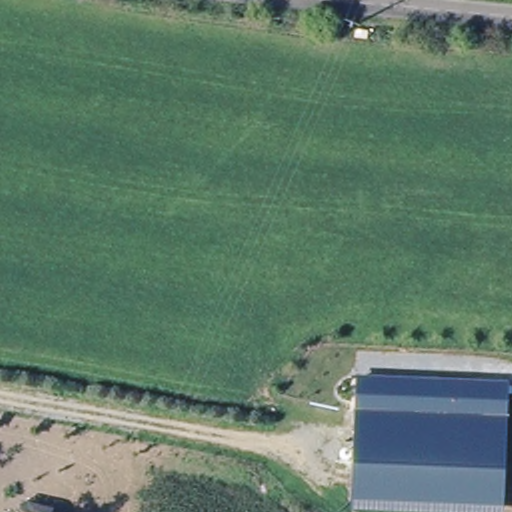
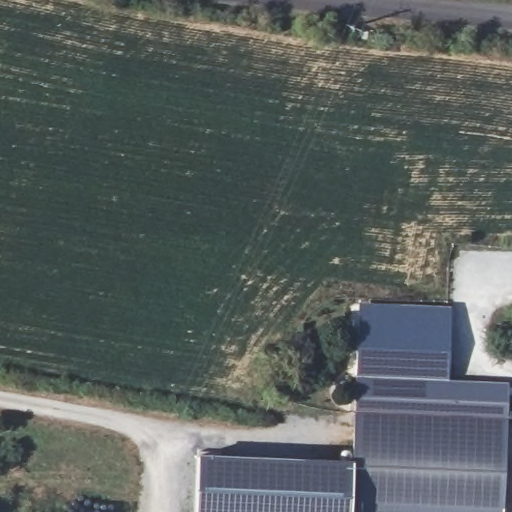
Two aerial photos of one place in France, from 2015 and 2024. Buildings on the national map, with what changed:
new [(360,302),(450,307),(448,383),(357,379),(360,302)]
unchanged [(505,506),(352,500),(357,379),(510,386),(505,506)]
new [(198,454),(353,461),(352,500),(350,510),(384,512),(195,512),(198,454)]
new [(505,506),(504,512),(384,512),(350,510),(352,500),(505,506)]

